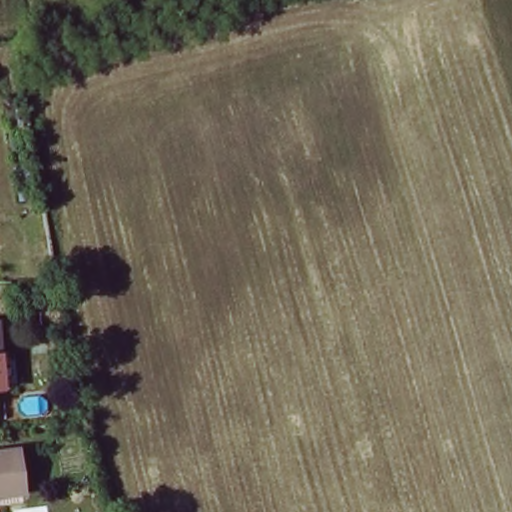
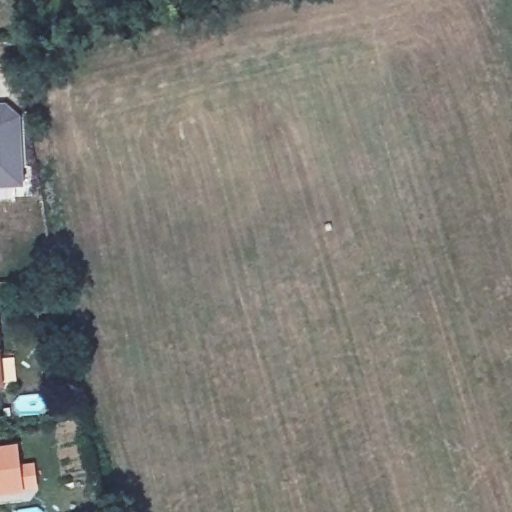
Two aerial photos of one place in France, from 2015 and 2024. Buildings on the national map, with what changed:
new [(8,105),(22,118),(25,189),(0,190),(0,105),(8,105)]
demolished [(30,248),(25,216),(44,212),(48,236),(49,244),(30,248)]
unchanged [(3,392),(0,392),(0,360),(3,392)]
unchanged [(19,451),(24,495),(0,498),(0,453),(19,451)]

